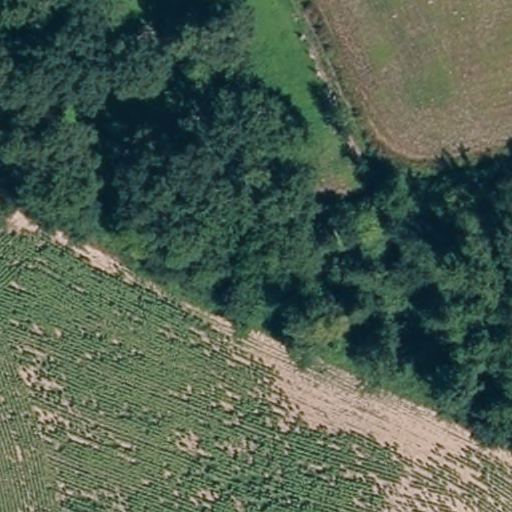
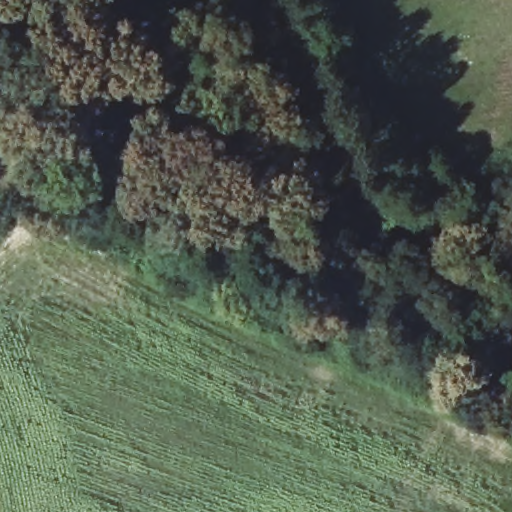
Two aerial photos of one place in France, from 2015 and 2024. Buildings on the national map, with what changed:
[]

